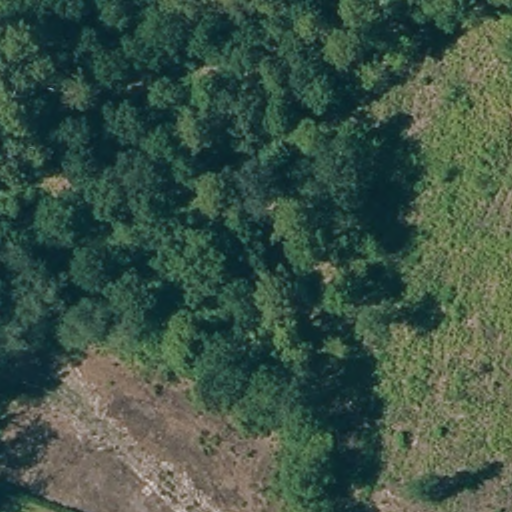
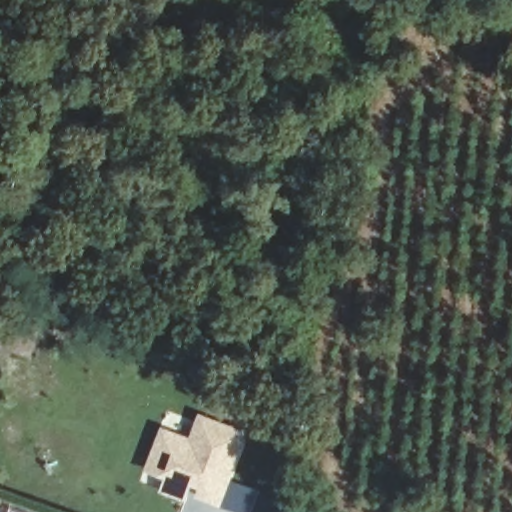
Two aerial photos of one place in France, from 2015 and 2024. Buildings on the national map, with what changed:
new [(199,415),(236,428),(232,439),(239,441),(219,499),(200,493),(204,480),(190,476),(184,495),(164,488),(164,487),(167,476),(165,474),(149,469),(161,430),(167,432),(190,440),(199,415)]

